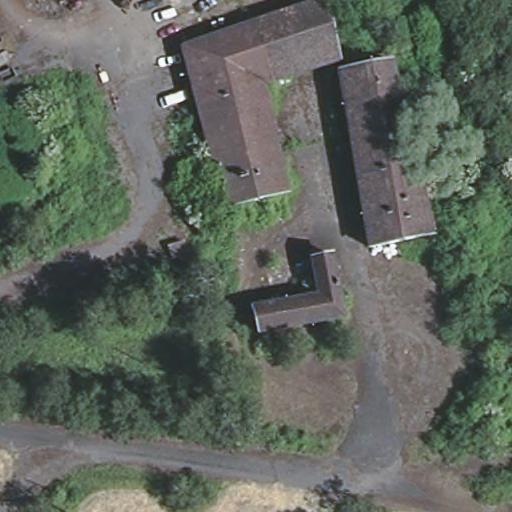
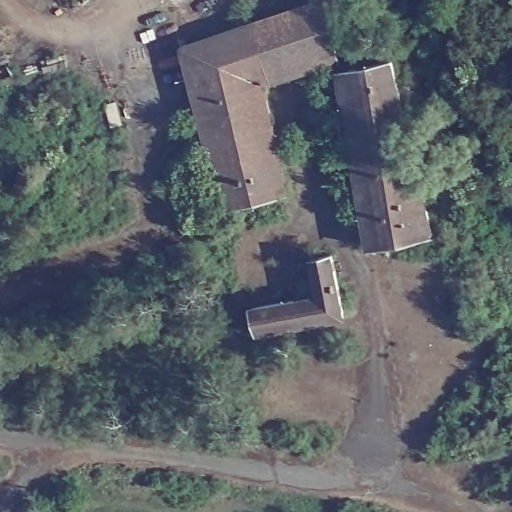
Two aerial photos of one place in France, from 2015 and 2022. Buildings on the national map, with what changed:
unchanged [(318,6),(334,62),(251,85),(251,86),(250,85),(192,104),(177,46),(318,6)]
unchanged [(395,66),(435,226),(365,244),(342,80),(395,66)]
unchanged [(250,85),(251,86),(280,193),(222,210),(192,104),(250,85)]
unchanged [(317,268),(335,263),(344,316),(261,336),(255,314),(320,298),(317,268)]

